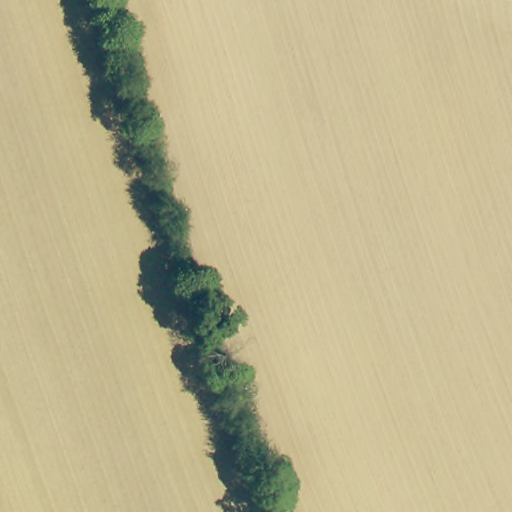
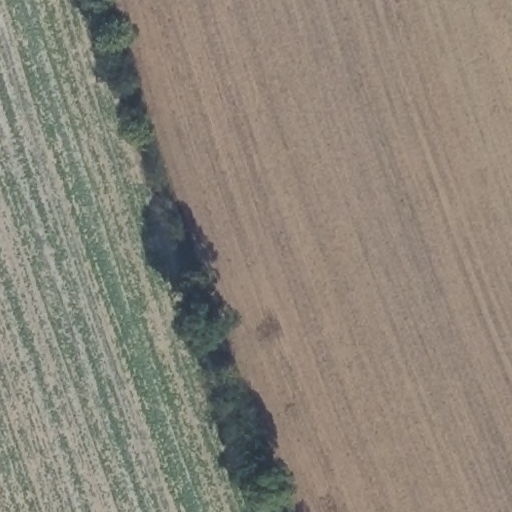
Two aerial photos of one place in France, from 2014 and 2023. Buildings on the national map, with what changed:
[]

